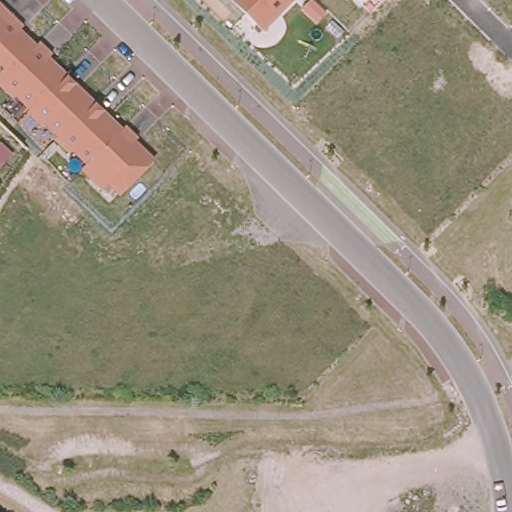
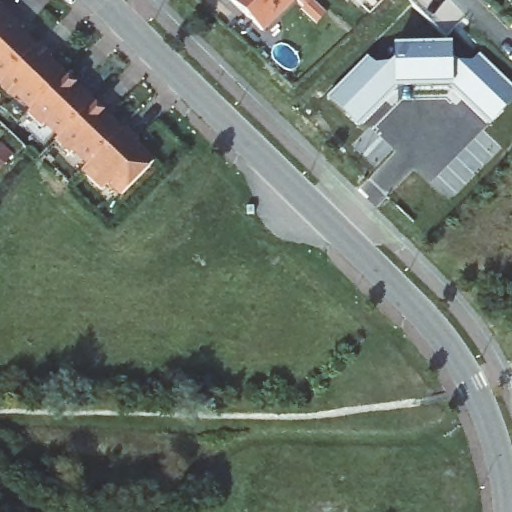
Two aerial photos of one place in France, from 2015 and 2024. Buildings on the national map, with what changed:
unchanged [(264,32),(230,0),(296,0),(264,32)]
unchanged [(25,27),(22,30),(38,46),(40,43),(53,55),(52,57),(123,128),(125,126),(140,140),(137,142),(155,161),(120,196),(108,185),(102,191),(82,170),(86,167),(72,151),(67,155),(54,140),(57,138),(45,124),(41,128),(27,113),(29,111),(17,98),(13,102),(0,89),(0,83),(0,3),(25,27)]
new [(389,64),(395,57),(393,45),(452,44),(453,61),(472,62),(479,55),(512,89),(512,104),(491,124),(452,85),(396,85),(360,125),(329,100),(367,57),(375,64),(389,64)]

